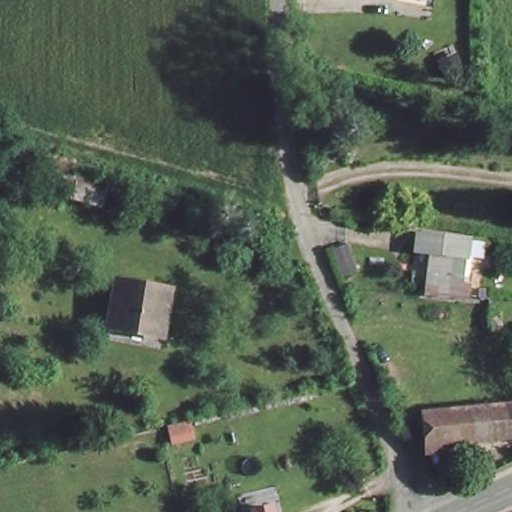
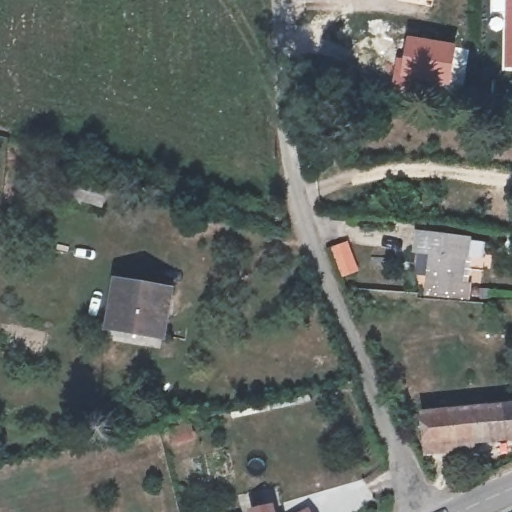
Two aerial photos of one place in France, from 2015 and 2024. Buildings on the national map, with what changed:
new [(506,0),(512,0),(512,67),(504,67),(506,0)]
new [(395,56),(403,58),(407,36),(457,45),(450,101),(390,93),(395,56)]
unchanged [(120,189),(114,208),(80,199),(86,178),(120,189)]
unchanged [(425,254),(413,252),(414,233),(467,235),(463,276),(472,278),(474,293),(425,288),(425,254)]
unchanged [(165,340),(109,329),(115,271),(175,280),(165,340)]
unchanged [(424,410),(501,405),(512,405),(512,438),(427,450),(424,410)]

